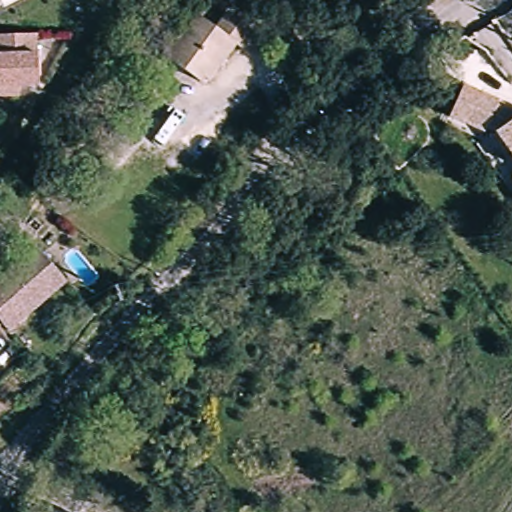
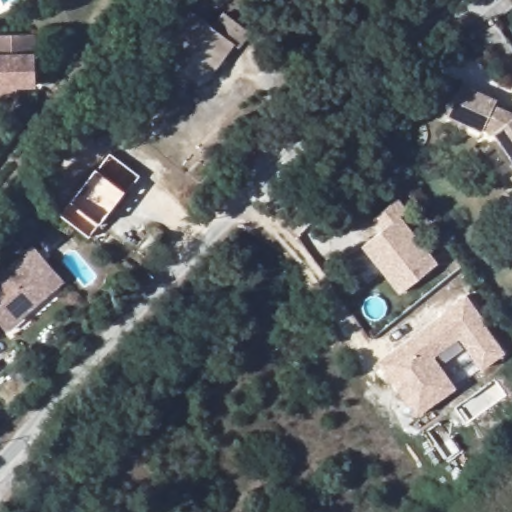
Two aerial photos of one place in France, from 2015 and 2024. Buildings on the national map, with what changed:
unchanged [(230,52),(220,64),(215,61),(197,82),(164,59),(159,55),(193,14),(214,30),(225,18),(243,34),(247,37),(242,44),(235,53),(230,52)]
unchanged [(22,98),(0,98),(0,37),(29,37),(40,37),(40,88),(40,98),(22,98)]
unchanged [(486,129),(484,133),(449,118),(450,115),(462,87),(474,93),(497,102),(491,116),(509,123),(512,121),(512,154),(497,134),(486,129)]
new [(383,231),(373,219),(399,200),(410,213),(402,219),(438,264),(400,295),(362,248),(383,231)]
unchanged [(0,324),(0,279),(32,252),(60,286),(26,316),(7,332),(0,324)]
new [(443,315),(442,313),(466,295),(485,321),(483,322),(506,354),(482,372),(459,340),(434,358),(457,389),(416,419),(377,363),(443,315)]
new [(461,452),(448,461),(428,432),(440,423),(461,452)]

